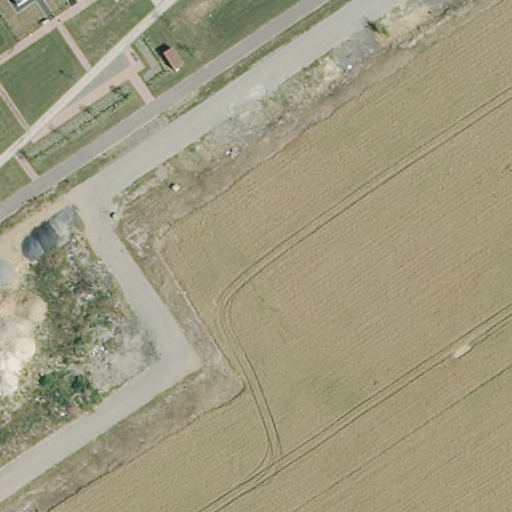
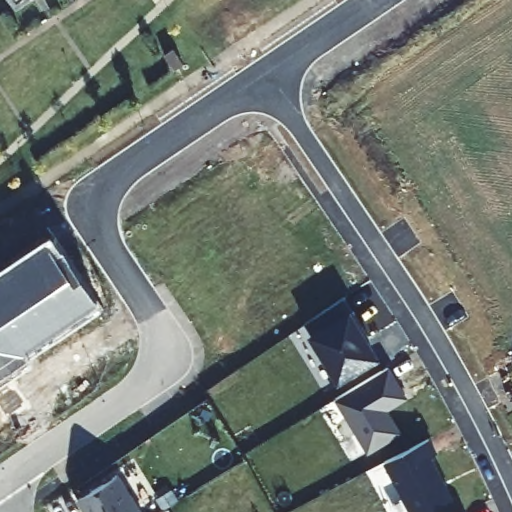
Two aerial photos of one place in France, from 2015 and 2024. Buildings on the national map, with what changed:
unchanged [(17,1),(16,0),(19,0),(17,1)]
new [(50,229),(102,305),(0,374),(0,264),(50,229)]
new [(363,327),(369,337),(365,340),(359,330),(375,356),(339,379),(313,336),(354,311),(363,327)]
new [(388,368),(405,397),(383,411),(385,416),(389,414),(400,433),(368,452),(335,399),(388,368)]
new [(436,452),(430,456),(451,498),(425,512),(411,512),(385,462),(429,438),(436,452)]
new [(118,474),(141,512),(86,512),(78,499),(118,474)]

